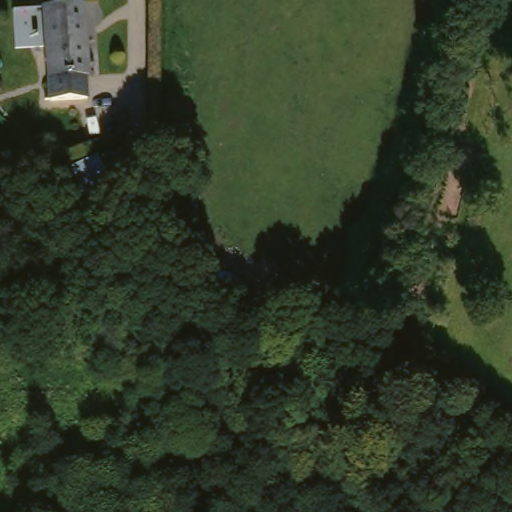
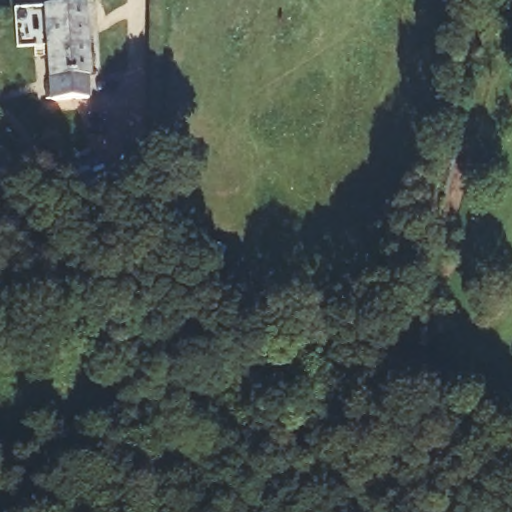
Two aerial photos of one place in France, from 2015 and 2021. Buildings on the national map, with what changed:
unchanged [(99,90),(61,94),(55,0),(97,0),(99,69),(97,69),(99,90)]
unchanged [(85,201),(71,170),(99,158),(112,188),(85,201)]

